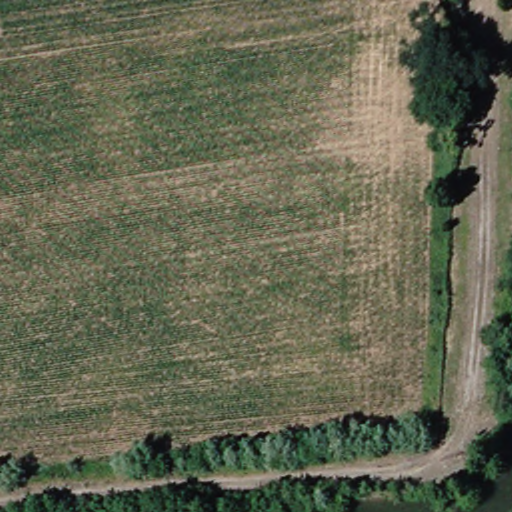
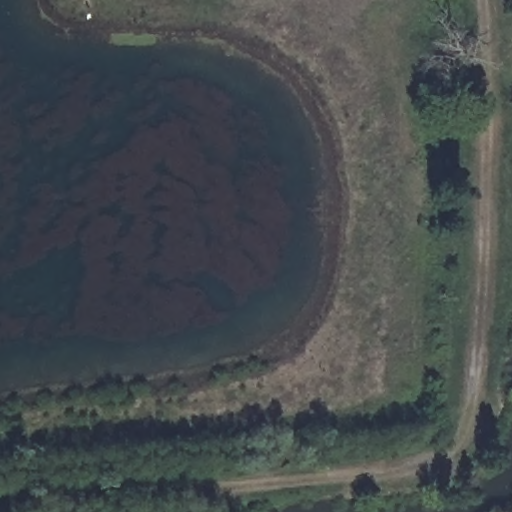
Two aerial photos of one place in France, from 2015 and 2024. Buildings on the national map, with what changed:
[]

